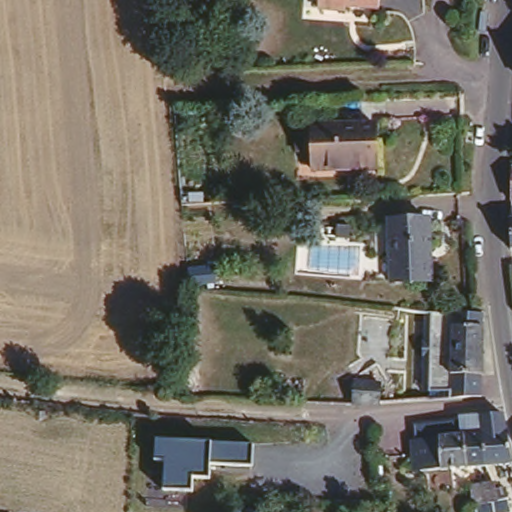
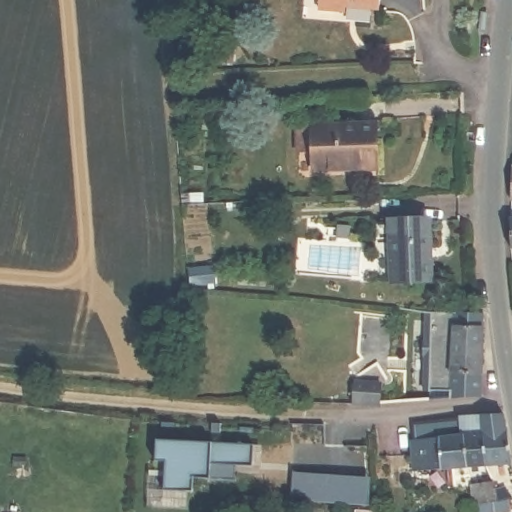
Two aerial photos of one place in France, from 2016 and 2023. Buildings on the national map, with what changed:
unchanged [(351,7),(323,9),(323,0),(371,0),(352,1),(351,7)]
unchanged [(371,124),(372,171),(310,172),(310,124),(371,124)]
unchanged [(508,197),(510,165),(512,165),(512,197),(508,197)]
unchanged [(429,217),(433,281),(393,285),(390,221),(429,217)]
unchanged [(510,247),(509,217),(512,217),(512,247),(510,247)]
unchanged [(483,326),(482,373),(445,371),(448,325),(483,326)]
unchanged [(351,402),(353,376),(384,380),(381,406),(351,402)]
unchanged [(481,462),(478,422),(501,418),(510,458),(481,462)]
unchanged [(414,443),(413,425),(450,423),(478,422),(481,462),(454,462),(414,463),(414,443)]
unchanged [(210,442),(249,446),(249,463),(234,462),(232,480),(191,476),(192,492),(164,490),(164,461),(153,460),(156,439),(210,442)]
unchanged [(490,471),(492,480),(501,478),(502,492),(479,492),(457,492),(455,472),(480,471),(490,471)]
new [(294,472),(294,473),(371,473),(370,501),(328,501),(294,501),(294,502),(292,502),(292,472),(294,472)]

